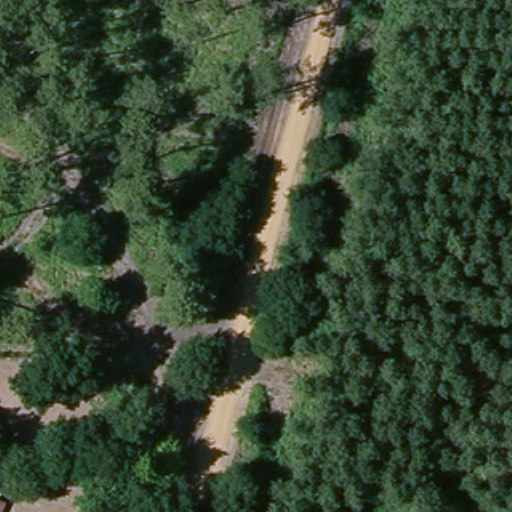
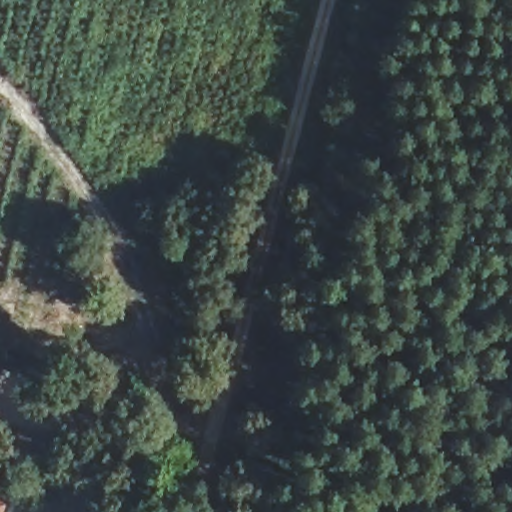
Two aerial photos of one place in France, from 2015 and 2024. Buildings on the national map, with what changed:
unchanged [(5,512),(0,512),(0,504),(7,507),(5,512)]

